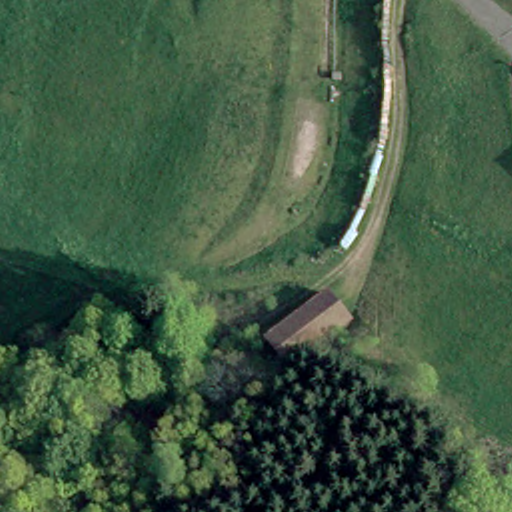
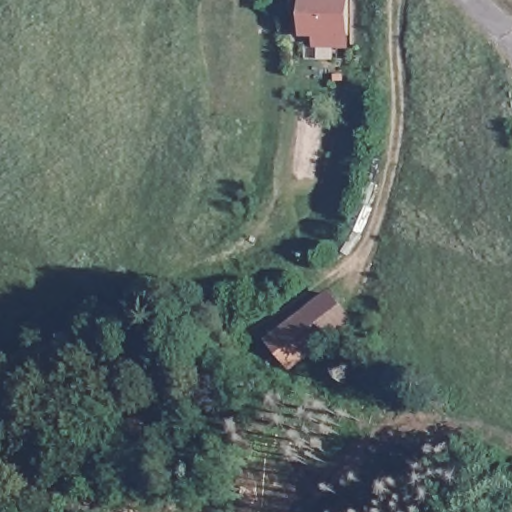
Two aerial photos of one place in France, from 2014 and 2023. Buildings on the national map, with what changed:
new [(313,48),(313,37),(302,36),(302,0),(348,0),(347,49),(313,48)]
unchanged [(290,360),(270,338),(275,335),(327,293),(347,317),(304,353),(290,360)]

